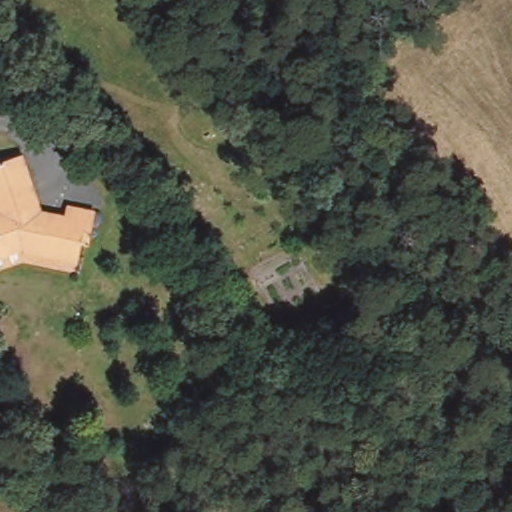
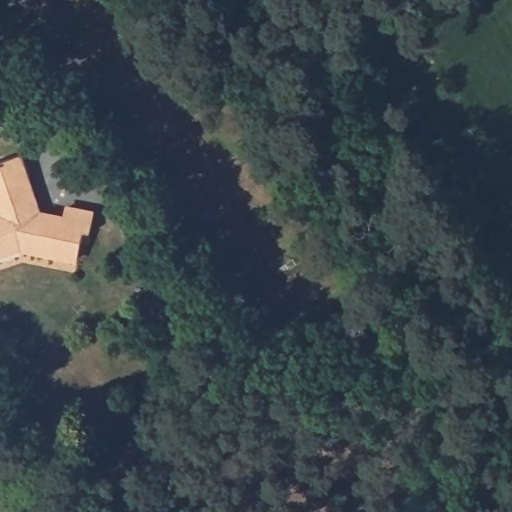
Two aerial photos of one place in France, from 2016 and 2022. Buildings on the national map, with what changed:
unchanged [(20,152),(27,177),(36,212),(62,218),(64,206),(93,212),(89,232),(81,230),(77,257),(21,245),(0,252),(0,159),(20,152)]

